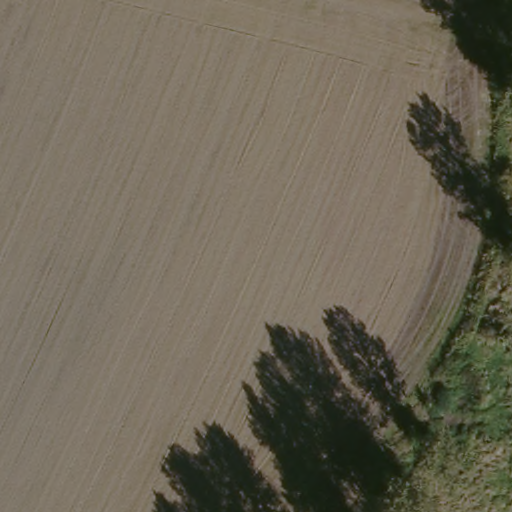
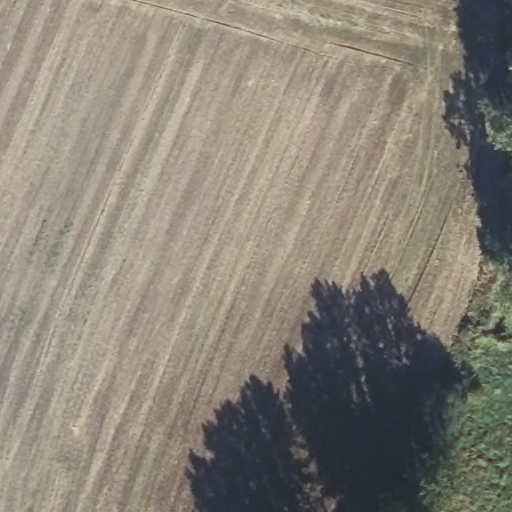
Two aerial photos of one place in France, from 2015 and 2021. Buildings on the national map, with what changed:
[]

